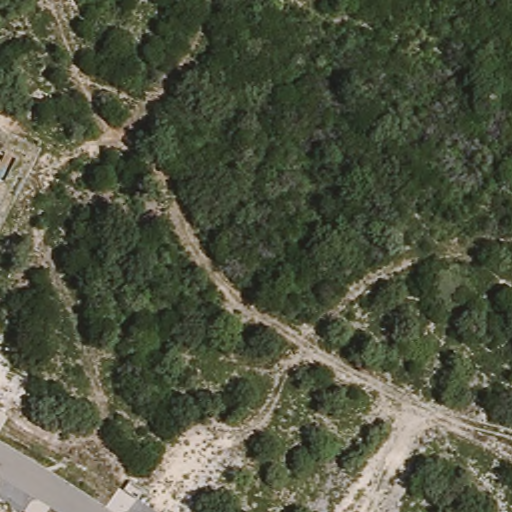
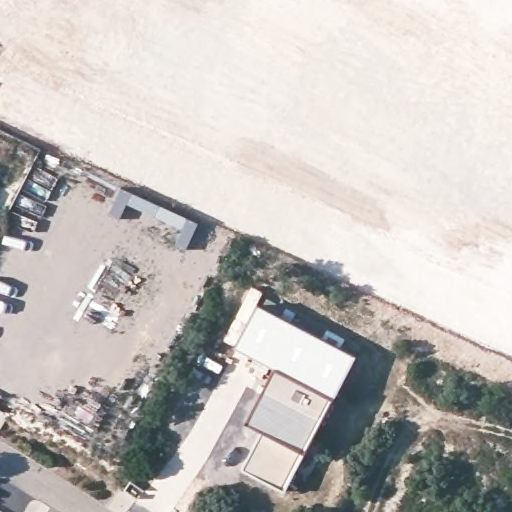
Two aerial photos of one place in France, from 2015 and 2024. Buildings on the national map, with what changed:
new [(244,467),(266,428),(249,419),(276,366),(236,345),(259,303),(356,355),(332,396),(304,448),(285,489),(244,467)]

